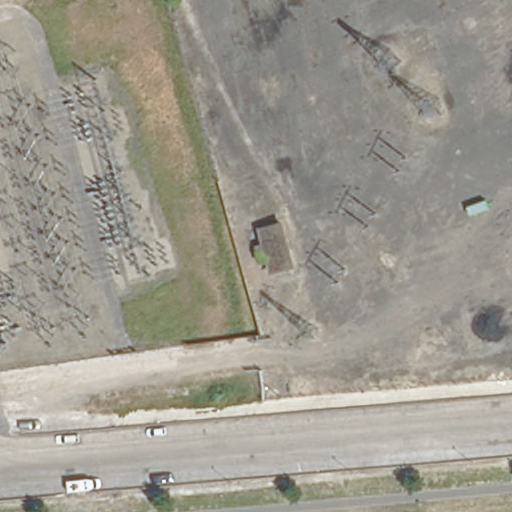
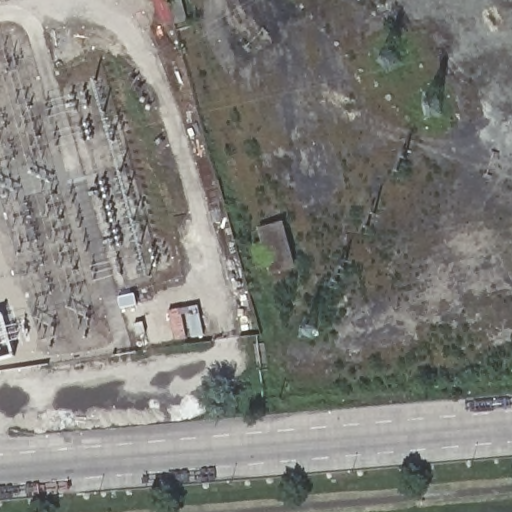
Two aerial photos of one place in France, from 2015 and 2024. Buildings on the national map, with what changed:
unchanged [(295,249),(270,256),(267,245),(259,247),(254,230),(262,228),(259,217),(285,211),(295,249)]

